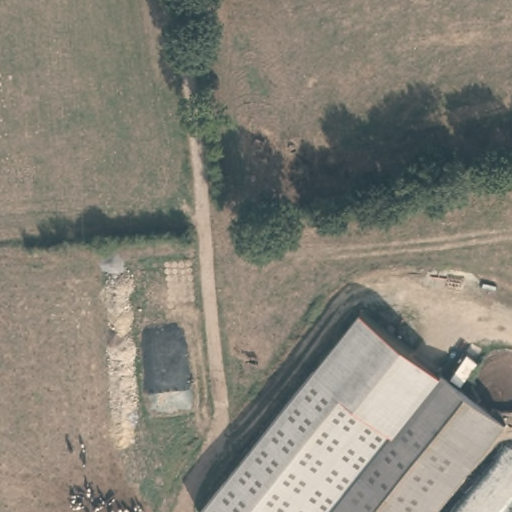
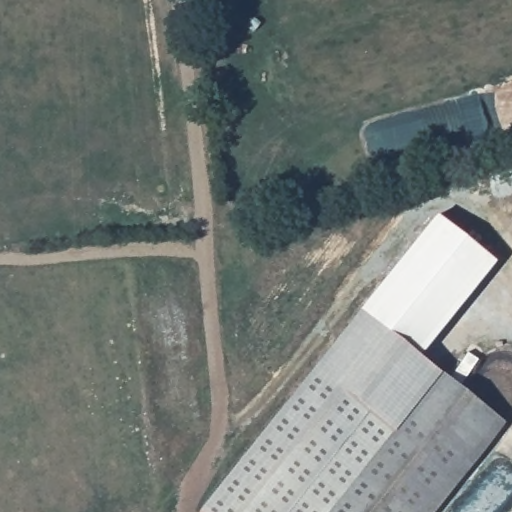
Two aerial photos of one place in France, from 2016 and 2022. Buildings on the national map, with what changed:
new [(425,350),(365,302),(437,213),(498,261),(425,350)]
unchanged [(329,512),(203,512),(199,508),(365,302),(445,367),(329,512)]
unchanged [(445,367),(500,407),(415,512),(329,512),(445,367)]

